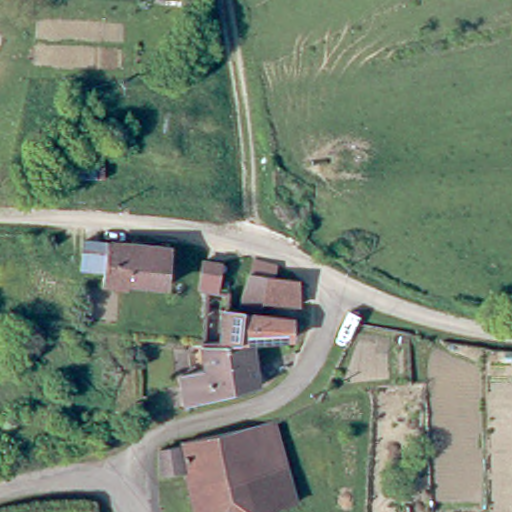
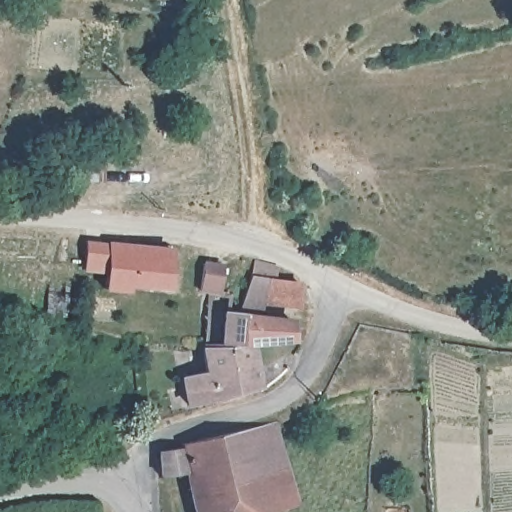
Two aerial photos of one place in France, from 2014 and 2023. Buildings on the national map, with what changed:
unchanged [(113,271),(92,268),(94,239),(116,242),(141,246),(137,284),(137,290),(112,288),(113,271)]
unchanged [(176,287),(137,284),(141,246),(179,249),(176,287)]
unchanged [(304,287),(305,310),(270,307),(266,315),(245,311),(259,265),(282,271),(279,282),(304,287)]
unchanged [(231,348),(232,314),(244,316),(244,317),(295,326),(296,345),(256,347),(231,348)]
unchanged [(264,391),(191,410),(184,381),(207,375),(206,349),(231,348),(256,347),(264,391)]
unchanged [(186,472),(162,477),(161,451),(184,442),(224,433),(265,425),(277,423),(296,504),(255,512),(194,512),(186,472)]

